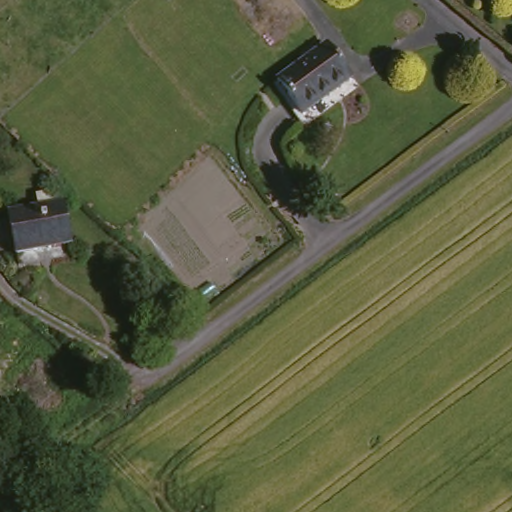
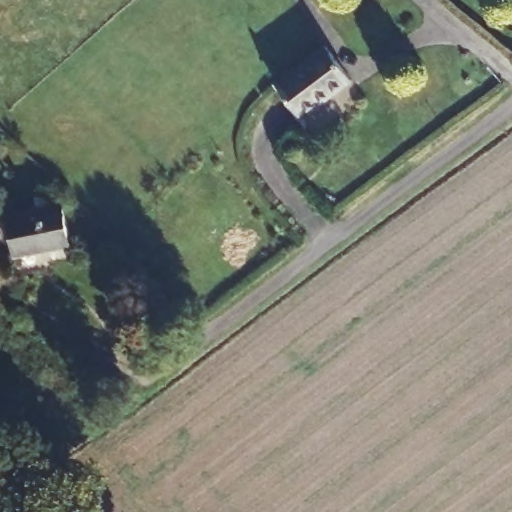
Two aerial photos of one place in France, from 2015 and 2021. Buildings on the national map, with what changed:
unchanged [(320,49),(346,83),(299,120),(272,87),(320,49)]
unchanged [(34,207),(54,203),(57,216),(66,256),(11,269),(2,227),(37,220),(34,207)]

